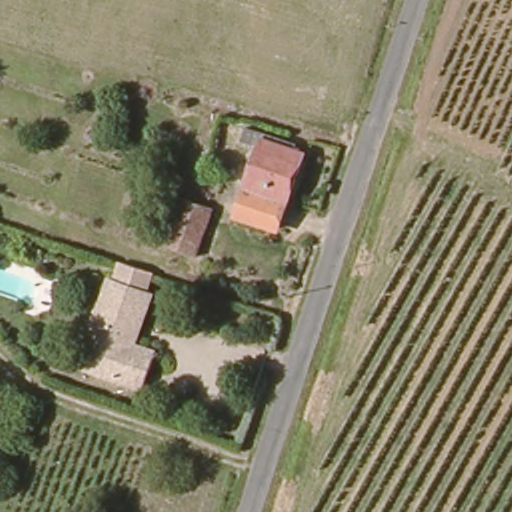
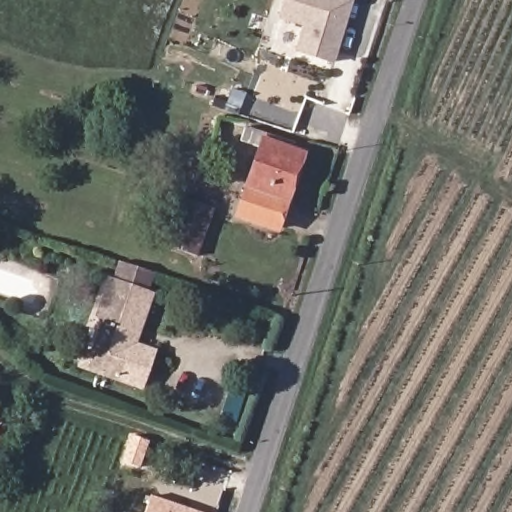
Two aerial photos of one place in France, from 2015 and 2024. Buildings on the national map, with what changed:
new [(282,0),(350,0),(331,62),(295,50),(303,24),(277,16),(282,0)]
unchanged [(278,231),(234,215),(261,152),(238,141),(243,125),(310,151),(278,231)]
unchanged [(180,195),(210,205),(193,253),(163,243),(180,195)]
unchanged [(148,274),(142,293),(150,297),(134,348),(155,355),(144,389),(80,368),(84,354),(90,356),(100,326),(94,324),(106,284),(110,285),(117,265),(148,274)]
new [(147,512),(151,498),(191,512),(147,512)]

